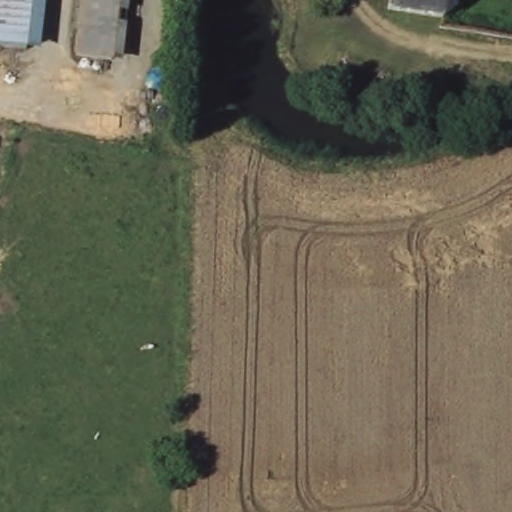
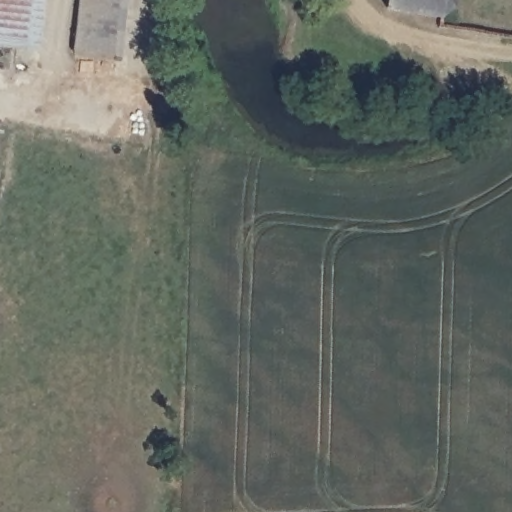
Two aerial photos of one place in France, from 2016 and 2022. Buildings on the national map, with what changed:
unchanged [(41,52),(0,46),(0,0),(47,0),(41,52)]
unchanged [(123,64),(72,57),(79,0),(130,0),(123,64)]
unchanged [(454,12),(442,20),(388,14),(390,0),(454,0),(454,12)]

